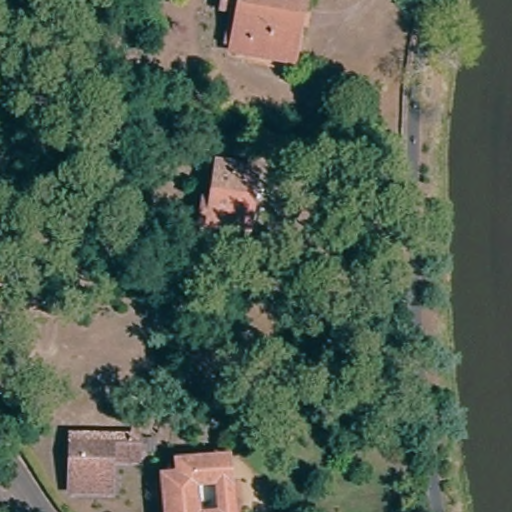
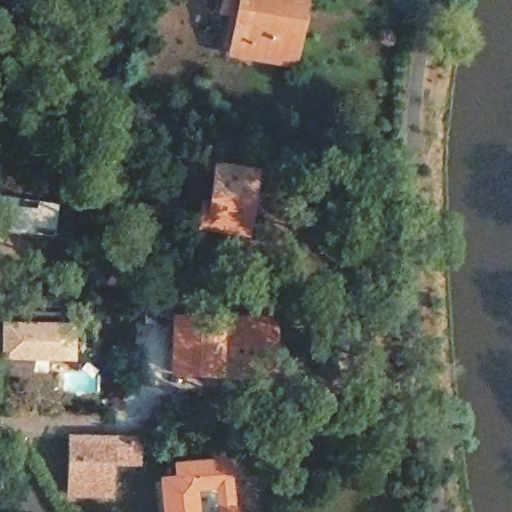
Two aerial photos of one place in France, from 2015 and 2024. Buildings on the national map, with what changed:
unchanged [(303,14),(298,14),(288,66),(229,55),(236,19),(218,15),(221,0),(305,0),(303,14)]
unchanged [(260,170),(251,227),(205,221),(210,200),(216,200),(222,164),(260,170)]
new [(37,201),(53,203),(51,236),(15,233),(0,230),(0,196),(36,204),(37,201)]
new [(171,314),(279,317),(277,380),(170,377),(171,314)]
new [(75,363),(48,363),(47,375),(29,374),(30,363),(0,361),(0,319),(76,321),(75,363)]
unchanged [(83,440),(136,442),(136,468),(110,467),(109,498),(68,497),(70,440),(83,440)]
unchanged [(183,488),(183,476),(218,473),(228,472),(231,512),(221,512),(219,497),(197,497),(198,512),(170,512),(168,489),(183,488)]

